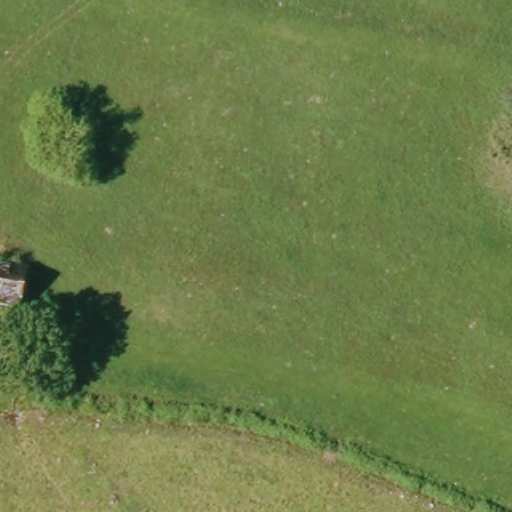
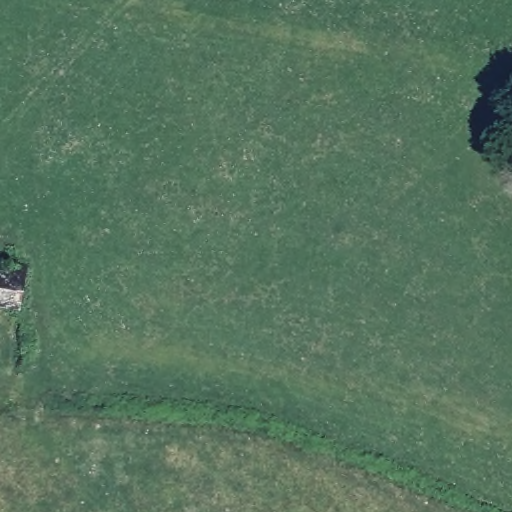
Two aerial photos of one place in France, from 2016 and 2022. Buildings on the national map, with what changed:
unchanged [(0,310),(0,268),(25,271),(19,313),(0,310)]

